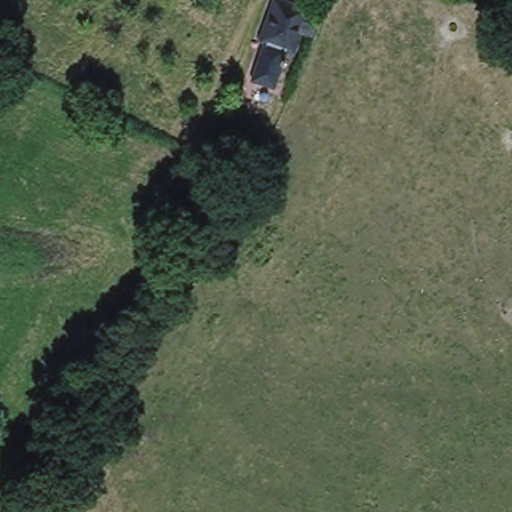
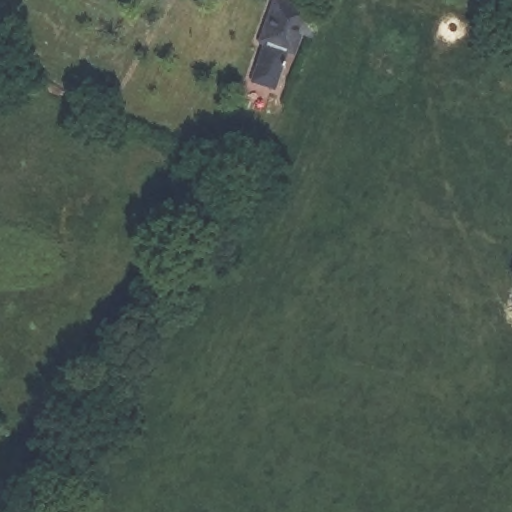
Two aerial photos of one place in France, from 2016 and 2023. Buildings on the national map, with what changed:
unchanged [(260,35),(275,0),(321,0),(299,51),(260,35)]
unchanged [(269,94),(256,90),(256,85),(253,84),(255,78),(247,75),(252,60),(258,61),(262,52),(282,59),(269,94)]

